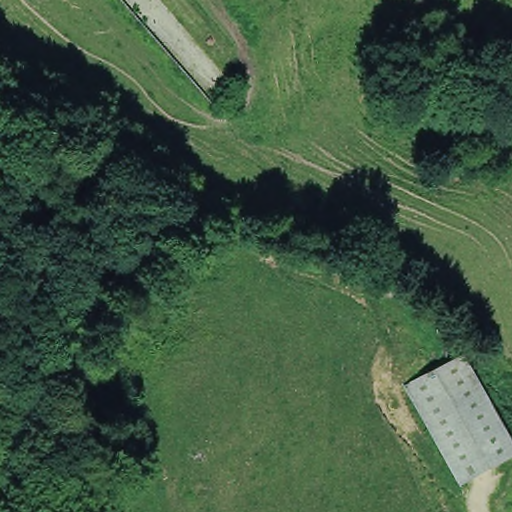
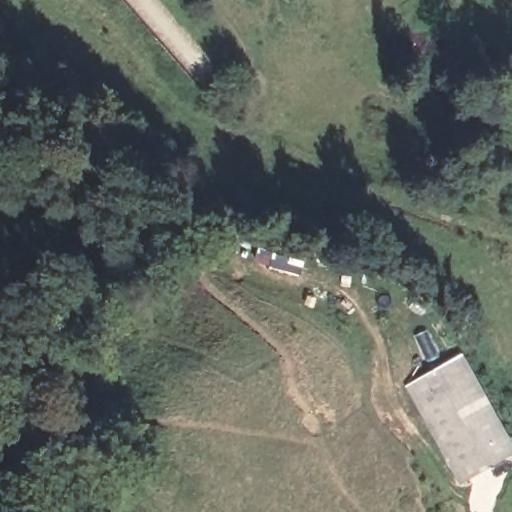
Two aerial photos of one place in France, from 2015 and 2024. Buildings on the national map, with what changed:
unchanged [(512,435),(512,450),(459,475),(404,379),(460,345),(512,435)]

